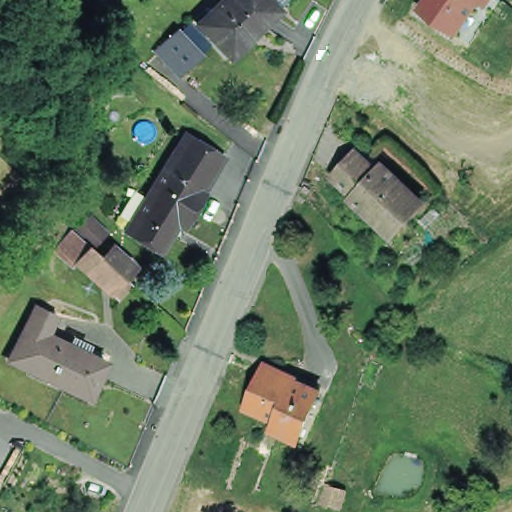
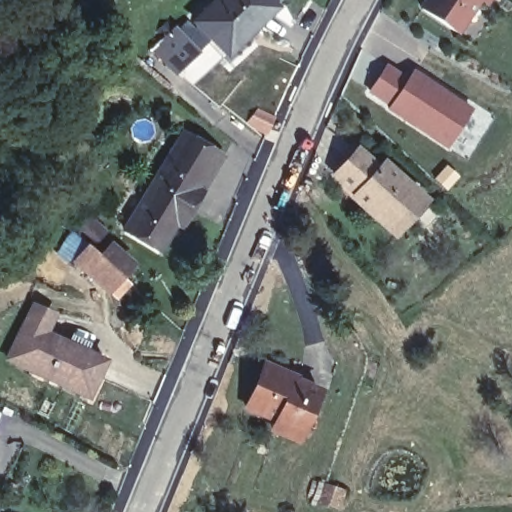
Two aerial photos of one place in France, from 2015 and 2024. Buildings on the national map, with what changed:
unchanged [(196,21),(219,0),(268,0),(275,7),(227,54),(196,21)]
unchanged [(275,7),(268,0),(282,0),(275,7)]
new [(424,0),(492,0),(488,6),(482,2),(460,37),(419,9),(424,0)]
unchanged [(186,39),(198,52),(185,65),(164,43),(177,30),(186,39)]
new [(447,147),(390,111),(393,106),(370,92),(386,67),(409,81),(414,72),(470,110),(447,147)]
unchanged [(182,132),(220,154),(187,207),(183,204),(150,184),(182,132)]
unchanged [(385,223),(355,197),(358,194),(337,174),(358,150),(363,145),(384,164),(414,191),(424,200),(395,232),(385,223)]
unchanged [(123,230),(150,184),(183,204),(155,250),(123,230)]
unchanged [(110,247),(99,258),(81,241),(92,230),(110,247)]
unchanged [(82,275),(78,280),(60,262),(79,244),(96,261),(107,271),(117,260),(126,268),(139,280),(129,290),(115,306),(82,275)]
unchanged [(9,362),(32,313),(55,318),(46,336),(29,372),(9,362)]
unchanged [(107,365),(90,400),(29,372),(46,336),(107,365)]
unchanged [(282,415),(250,401),(267,360),(324,383),(307,425),(302,436),(277,425),(282,415)]

